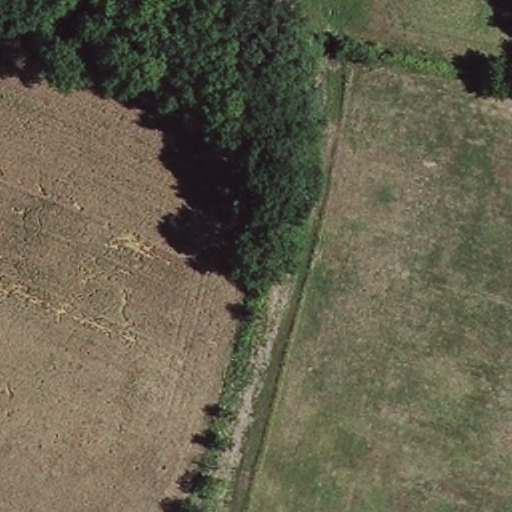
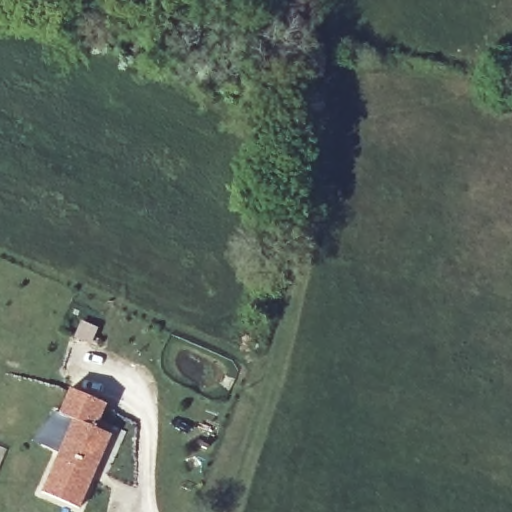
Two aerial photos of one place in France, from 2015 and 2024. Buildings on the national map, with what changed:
new [(107,402),(97,427),(111,433),(81,507),(42,490),(72,418),(60,413),(69,388),(107,402)]

